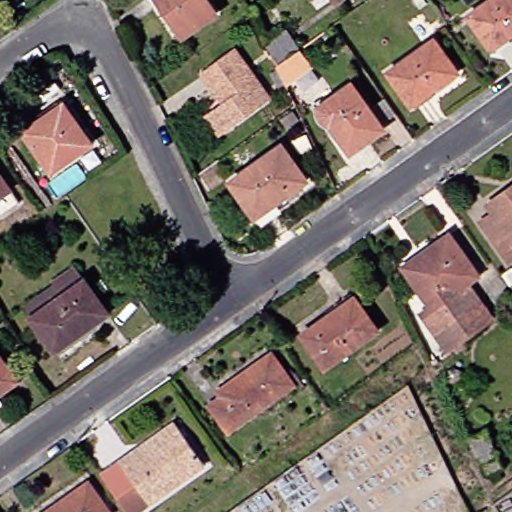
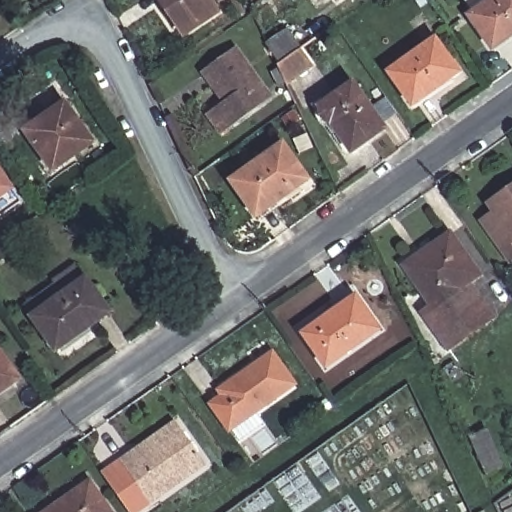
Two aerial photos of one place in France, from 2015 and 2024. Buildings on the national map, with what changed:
unchanged [(161,0),(214,0),(222,11),(190,34),(174,12),(171,14),(161,0)]
unchanged [(340,1),(339,0),(340,0),(340,1)]
unchanged [(500,51),(494,44),(474,15),(495,0),(512,0),(512,43),(500,51)]
unchanged [(283,62),(273,47),(290,36),(301,51),(283,62)]
unchanged [(413,100),(392,72),(438,39),(461,72),(440,87),(442,91),(418,107),(413,100)]
unchanged [(217,107),(227,100),(206,71),(239,47),(273,96),(230,127),(222,132),(209,113),(217,107)]
unchanged [(291,87),(282,69),(302,54),(315,70),(291,87)]
unchanged [(388,128),(355,152),(337,126),(330,122),(325,117),(323,107),(356,83),(388,128)]
unchanged [(55,171),(26,129),(66,100),(96,141),(55,171)]
unchanged [(236,184),(287,146),(313,180),(282,202),(262,219),(259,215),(236,184)]
unchanged [(0,164),(19,192),(0,206),(0,164)]
unchanged [(483,226),(496,217),(490,209),(512,193),(512,262),(483,226)]
unchanged [(435,305),(424,290),(430,287),(414,263),(452,236),(480,277),(471,285),(496,320),(449,352),(423,314),(435,305)]
unchanged [(82,268),(114,315),(60,353),(36,320),(30,310),(59,287),(58,286),(82,268)]
unchanged [(328,367),(306,334),(321,323),(317,318),(355,292),(361,300),(382,330),(328,367)]
unchanged [(0,391),(0,346),(21,376),(0,391)]
unchanged [(234,431),(214,405),(226,396),(223,391),(275,354),(297,386),(234,431)]
unchanged [(132,512),(105,474),(137,452),(140,455),(179,426),(184,432),(207,464),(138,512),(132,512)]
unchanged [(50,512),(87,485),(108,512),(50,512)]

